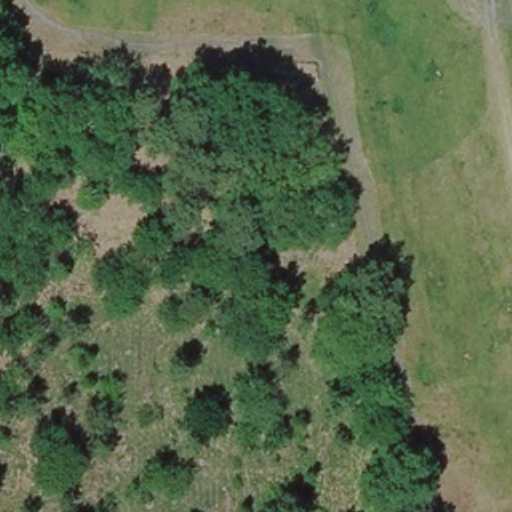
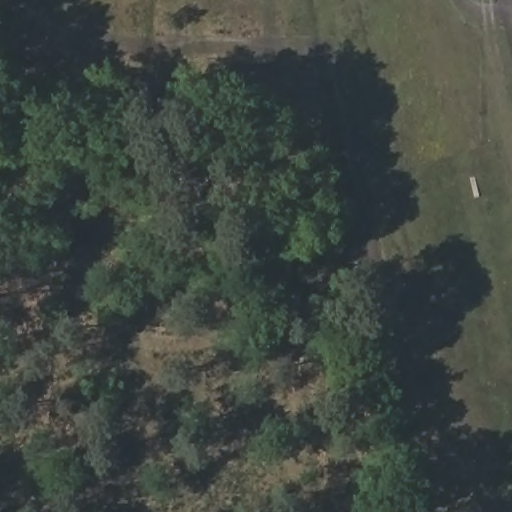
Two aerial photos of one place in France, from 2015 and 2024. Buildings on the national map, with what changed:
[]

